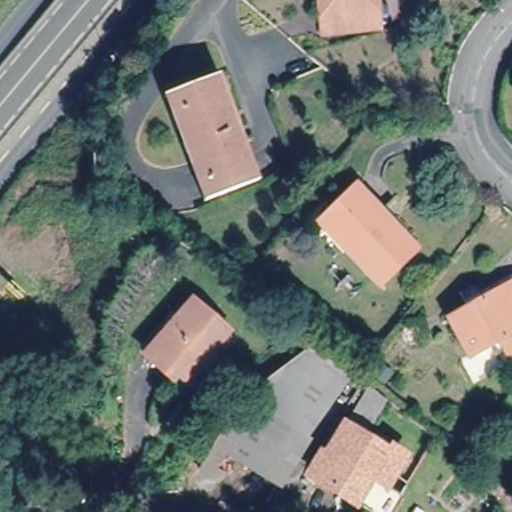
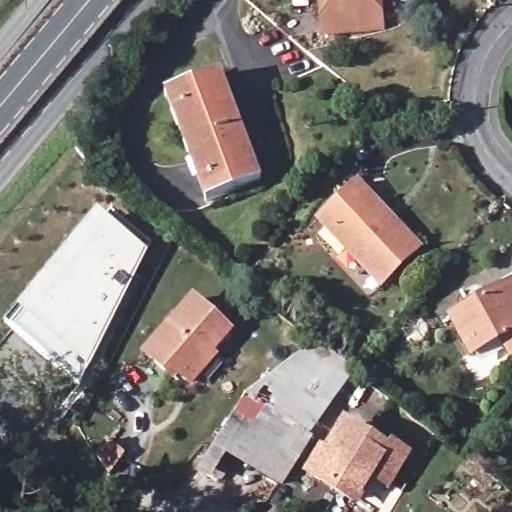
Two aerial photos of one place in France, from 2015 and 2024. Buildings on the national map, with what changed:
unchanged [(379,26),(322,33),(319,0),(377,0),(379,26)]
unchanged [(182,141),(165,96),(169,94),(219,74),(226,92),(246,140),(260,177),(210,197),(205,198),(187,152),(182,141)]
unchanged [(347,251),(317,220),(349,189),(355,183),(393,223),(419,250),(386,282),(381,286),(347,251)]
new [(87,369),(80,383),(7,323),(17,311),(97,211),(148,254),(87,369)]
unchanged [(470,345),(450,308),(512,274),(512,345),(504,349),(494,331),(470,345)]
unchanged [(170,366),(152,351),(146,346),(170,318),(192,292),(228,322),(210,344),(215,349),(192,376),(180,366),(175,371),(170,366)]
unchanged [(320,338),(359,368),(316,429),(250,391),(320,338)]
unchanged [(339,421),(364,380),(384,395),(360,434),(339,421)]
unchanged [(316,429),(318,431),(287,484),(230,451),(217,473),(205,466),(250,391),(316,429)]
unchanged [(308,473),(339,421),(360,434),(381,447),(385,441),(413,458),(395,489),(378,479),(362,505),(308,473)]
unchanged [(407,497),(398,512),(374,512),(362,505),(378,479),(395,489),(407,497)]

